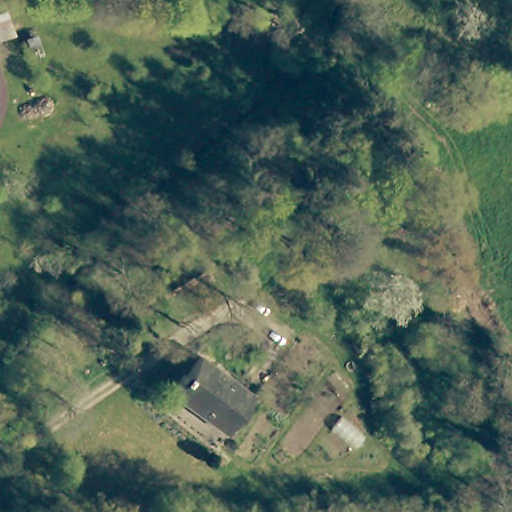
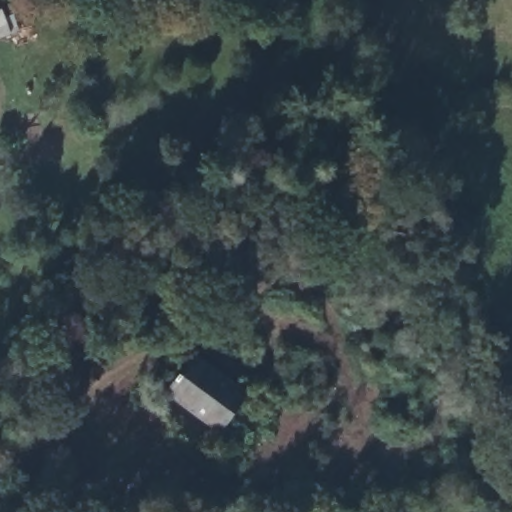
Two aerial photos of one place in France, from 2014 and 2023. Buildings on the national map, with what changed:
unchanged [(181,377),(193,358),(246,391),(223,428),(166,393),(177,374),(181,377)]

